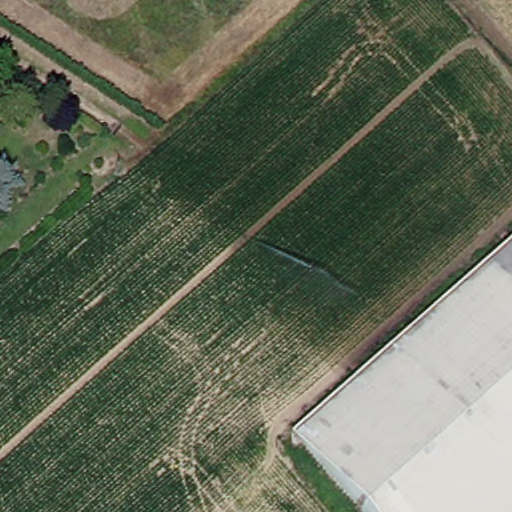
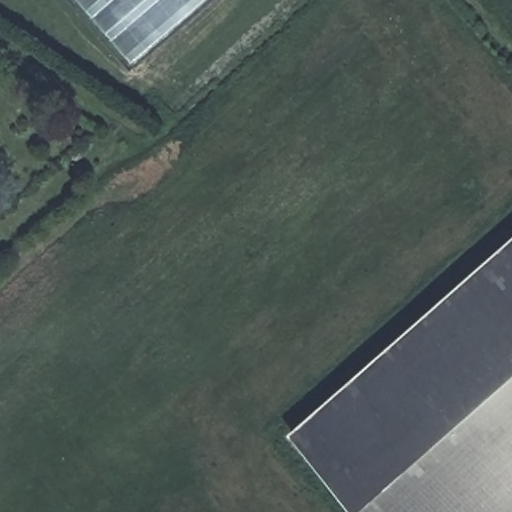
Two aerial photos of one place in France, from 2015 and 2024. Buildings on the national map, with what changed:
new [(208,0),(132,65),(77,0),(208,0)]
unchanged [(280,436),(512,232),(512,512),(347,512),(280,436)]

